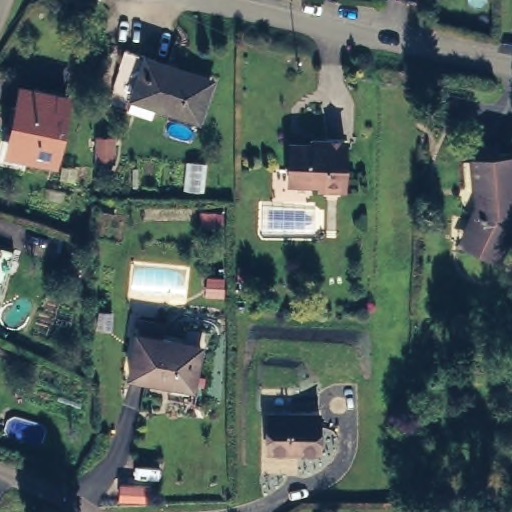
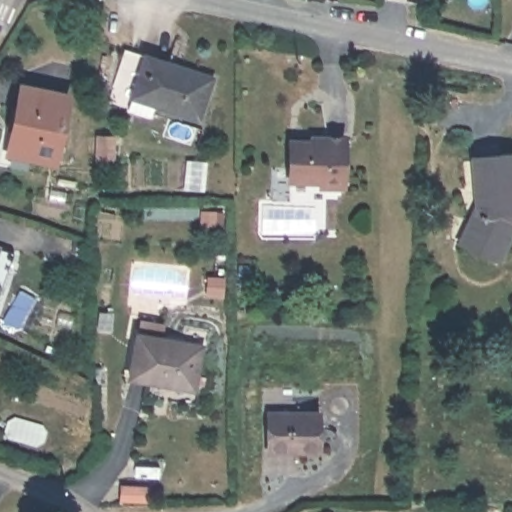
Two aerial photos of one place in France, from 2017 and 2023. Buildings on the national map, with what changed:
unchanged [(144,53),(189,68),(187,74),(231,87),(218,128),(172,114),(173,107),(150,100),(147,113),(125,106),(144,53)]
unchanged [(17,89),(60,97),(47,163),(5,155),(17,89)]
unchanged [(94,134),(111,134),(111,160),(94,160),(94,134)]
unchanged [(330,142),(330,139),(349,139),(351,180),(343,188),(332,188),(327,182),(298,184),(295,183),(294,144),(298,144),(330,142)]
unchanged [(481,216),(475,159),(512,154),(512,242),(500,265),(469,249),(485,217),(481,216)]
unchanged [(185,159),(205,159),(204,185),(182,185),(185,159)]
unchanged [(6,250),(0,266),(0,248),(6,250)]
unchanged [(251,274),(251,287),(242,287),(242,273),(251,274)]
unchanged [(206,275),(223,276),(221,297),(205,296),(206,275)]
unchanged [(201,346),(193,385),(164,380),(163,386),(128,380),(137,334),(201,346)]
unchanged [(320,449),(302,449),(299,445),(293,445),(269,445),(268,407),(293,407),(320,407),(320,449)]
unchanged [(142,498),(120,498),(120,482),(147,483),(147,498),(142,498)]

